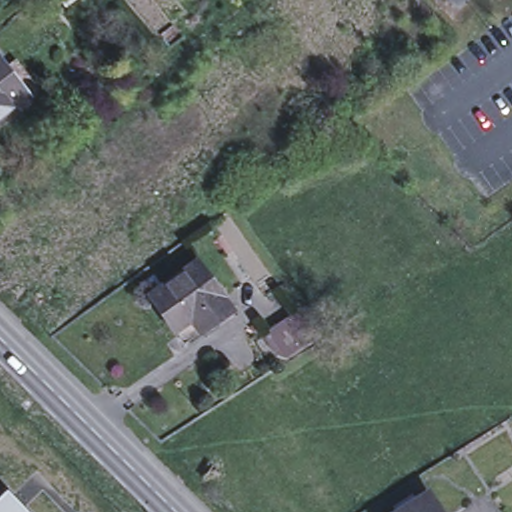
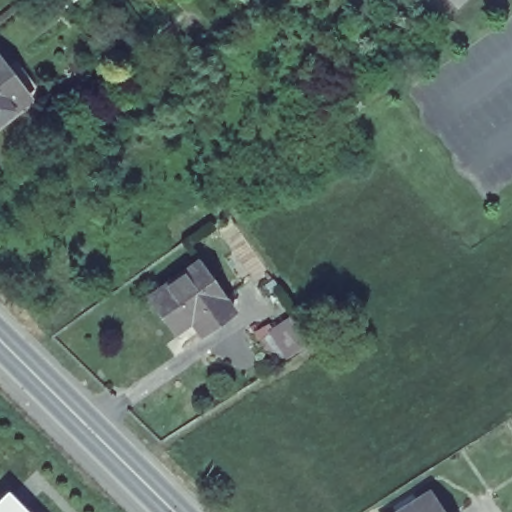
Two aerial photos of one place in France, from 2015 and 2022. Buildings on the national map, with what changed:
unchanged [(65,9),(58,0),(77,0),(65,9)]
unchanged [(460,8),(456,5),(451,0),(468,0),(460,8)]
unchanged [(10,80),(18,73),(33,93),(0,118),(0,67),(10,80)]
unchanged [(202,260),(236,307),(205,329),(195,314),(180,326),(155,293),(202,260)]
unchanged [(287,319),(305,344),(285,356),(268,331),(287,319)]
unchanged [(0,512),(0,496),(7,490),(29,512),(0,512)]
unchanged [(440,512),(402,512),(428,495),(440,512)]

